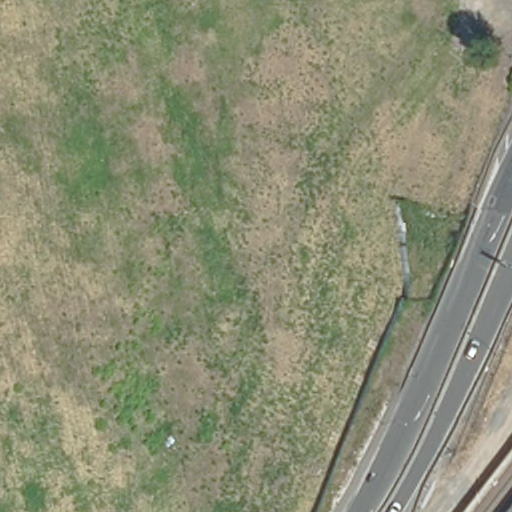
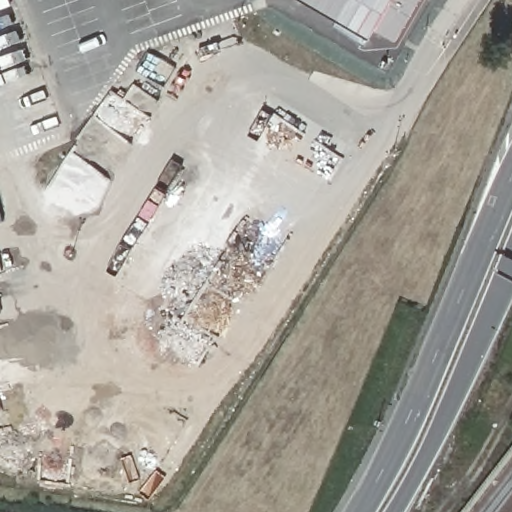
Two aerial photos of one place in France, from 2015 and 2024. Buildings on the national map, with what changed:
new [(375,29),(370,38),(303,0),(420,0),(396,41),(375,29)]

